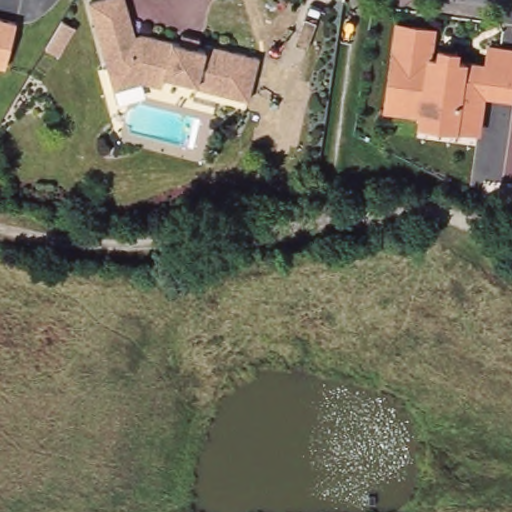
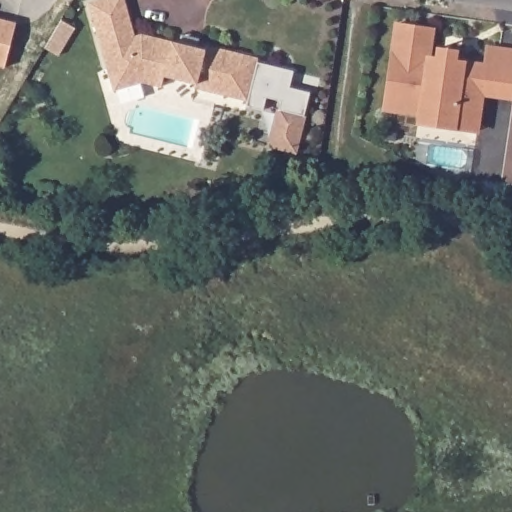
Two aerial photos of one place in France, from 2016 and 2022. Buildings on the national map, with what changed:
unchanged [(162,81),(143,76),(114,84),(91,0),(127,0),(135,30),(142,28),(179,37),(181,29),(189,30),(199,33),(197,42),(204,44),(205,39),(258,53),(247,96),(195,82),(196,78),(178,73),(164,70),(162,81)]
unchanged [(16,18),(4,63),(0,61),(0,14),(16,18)]
unchanged [(45,47),(58,24),(61,19),(75,27),(72,32),(58,55),(45,47)]
unchanged [(419,119),(420,110),(384,105),(397,20),(433,25),(429,52),(437,54),(438,44),(456,46),(455,56),(486,61),(488,43),(512,46),(512,93),(483,89),(481,104),(477,127),(455,124),(419,119)]
new [(292,70),(288,87),(308,91),(303,114),(307,115),(299,154),(268,147),(275,110),(279,111),(281,101),(266,97),(264,108),(245,104),(247,96),(256,61),(292,70)]

